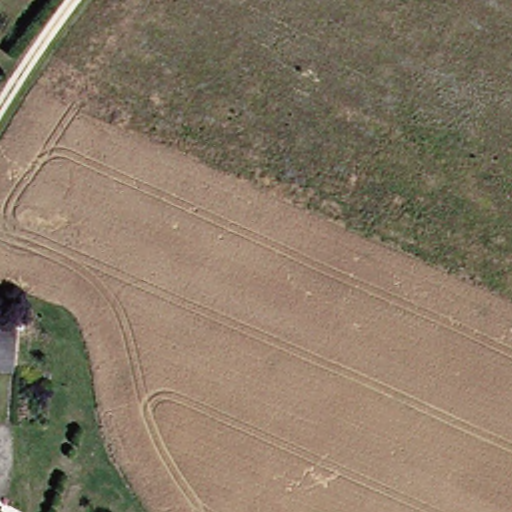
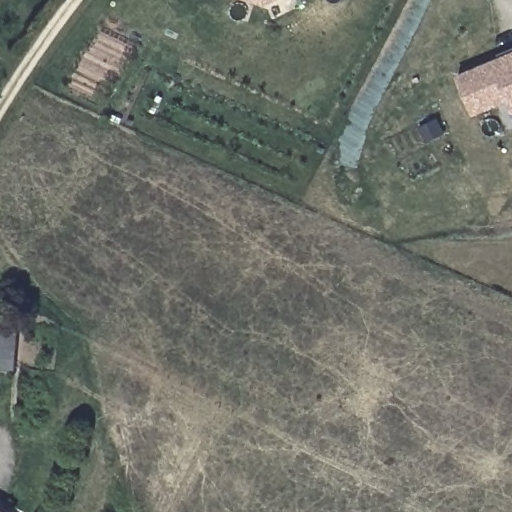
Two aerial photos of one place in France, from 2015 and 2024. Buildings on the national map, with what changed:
unchanged [(266,6),(248,0),(278,0),(266,6)]
new [(457,74),(501,56),(501,53),(512,49),(512,114),(507,103),(474,116),(457,74)]
unchanged [(15,296),(15,309),(17,310),(14,355),(0,355),(0,295),(15,296)]
unchanged [(4,512),(0,512),(0,510),(4,512)]

